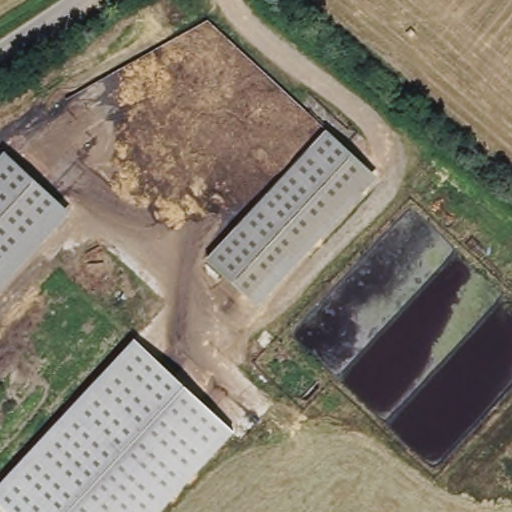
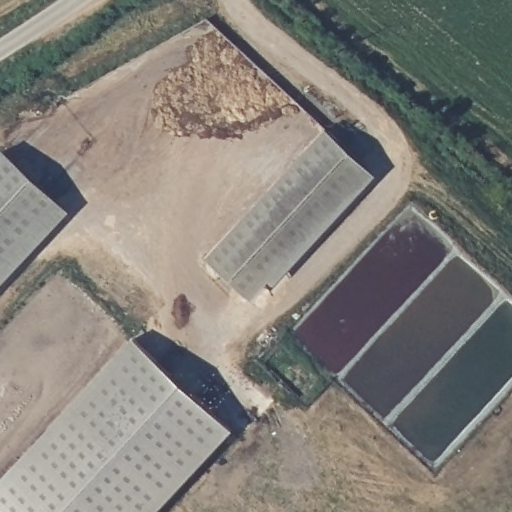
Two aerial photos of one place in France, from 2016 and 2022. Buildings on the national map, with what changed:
unchanged [(330,126),(380,175),(264,301),(209,254),(330,126)]
unchanged [(6,148),(74,210),(0,289),(0,154),(6,148)]
unchanged [(135,338),(234,432),(159,512),(7,512),(0,506),(0,484),(135,338)]

